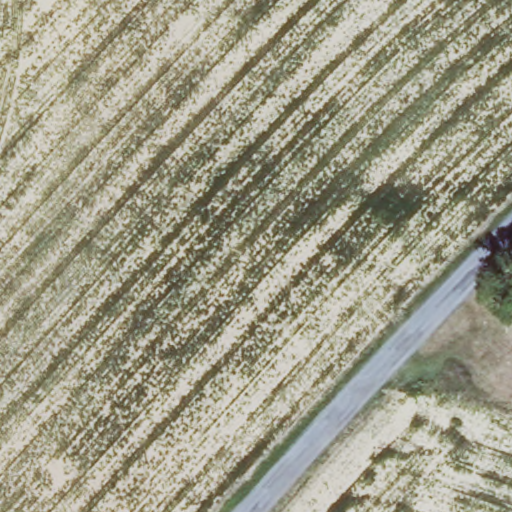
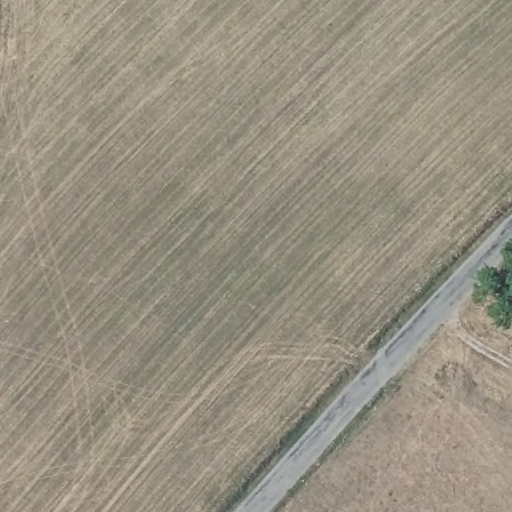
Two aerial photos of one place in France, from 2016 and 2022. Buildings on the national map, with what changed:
[]

